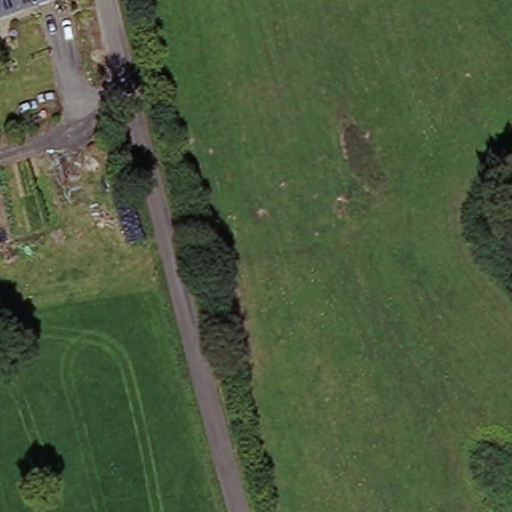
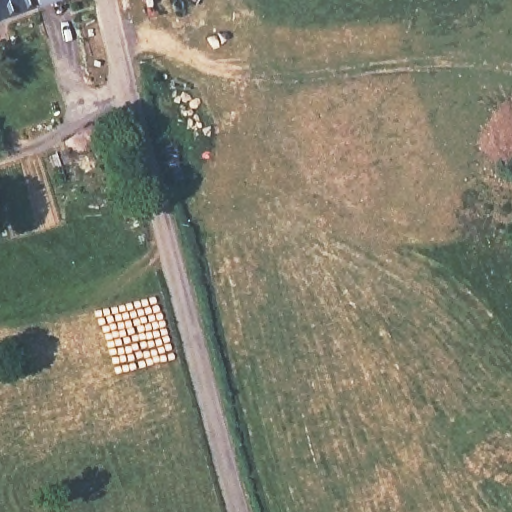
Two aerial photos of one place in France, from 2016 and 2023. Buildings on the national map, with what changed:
unchanged [(0,26),(0,0),(73,0),(0,26)]

